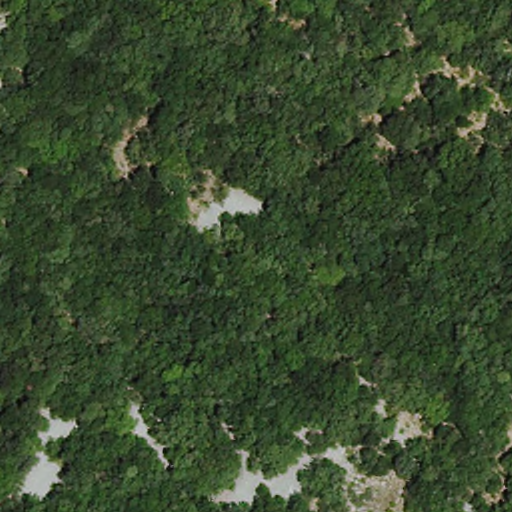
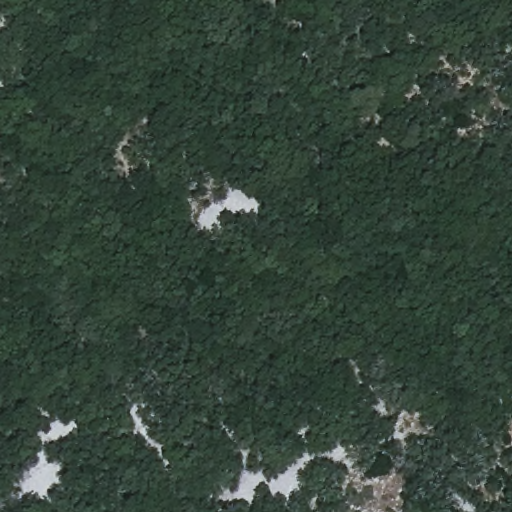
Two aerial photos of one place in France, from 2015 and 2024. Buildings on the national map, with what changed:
[]

